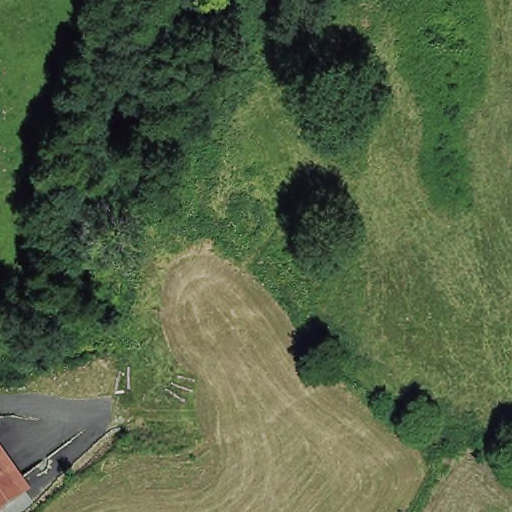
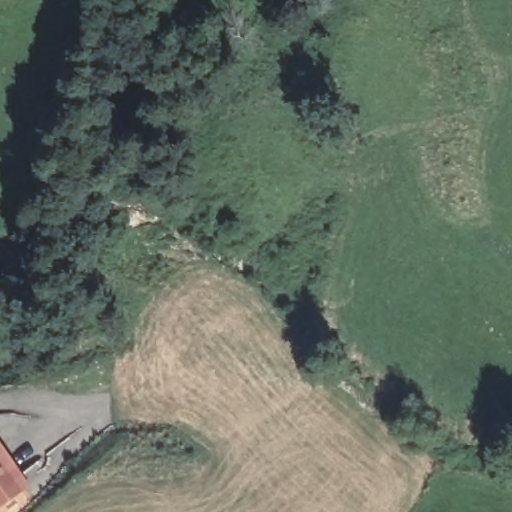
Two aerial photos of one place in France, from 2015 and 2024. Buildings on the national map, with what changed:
unchanged [(0,497),(0,455),(20,483),(0,497)]

